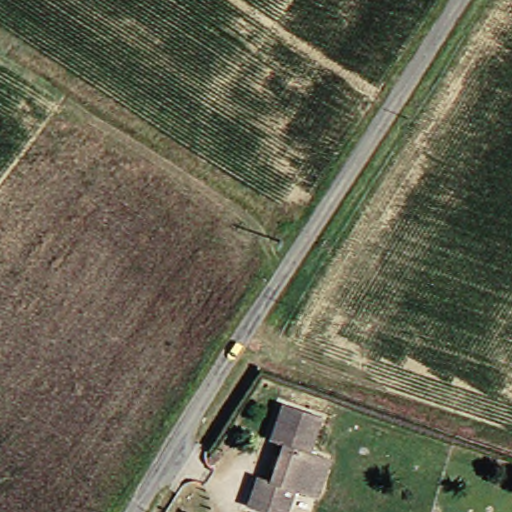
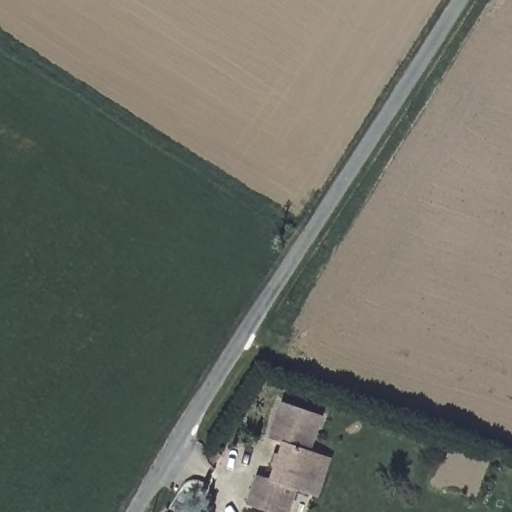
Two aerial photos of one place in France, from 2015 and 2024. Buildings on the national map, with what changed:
unchanged [(252,512),(242,509),(252,481),(265,486),(278,447),(265,442),(277,409),(316,423),(304,457),(319,462),(325,464),(312,501),(306,499),(289,493),(284,509),(283,512),(252,512)]

